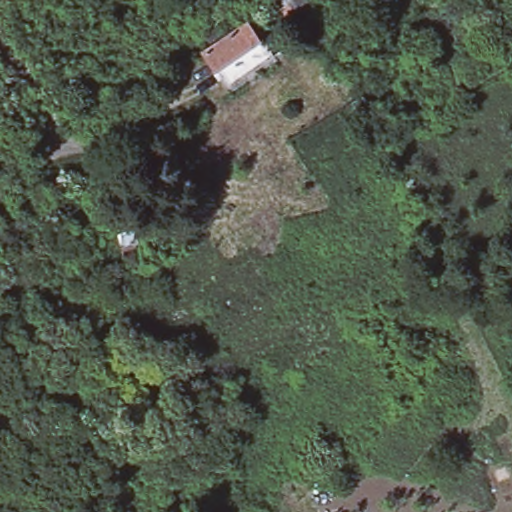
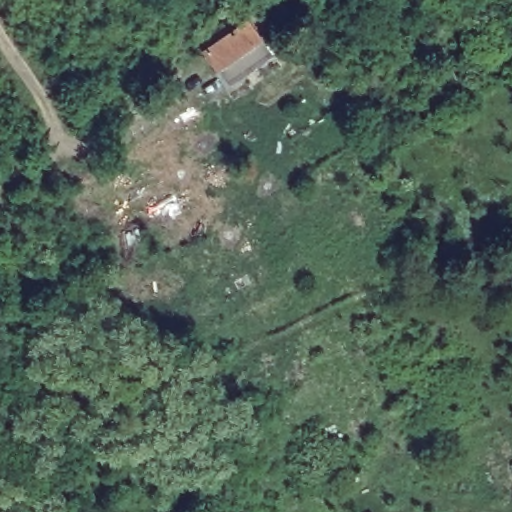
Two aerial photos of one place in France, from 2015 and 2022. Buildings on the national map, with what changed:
unchanged [(271,56),(232,82),(215,57),(250,25),(271,56)]

